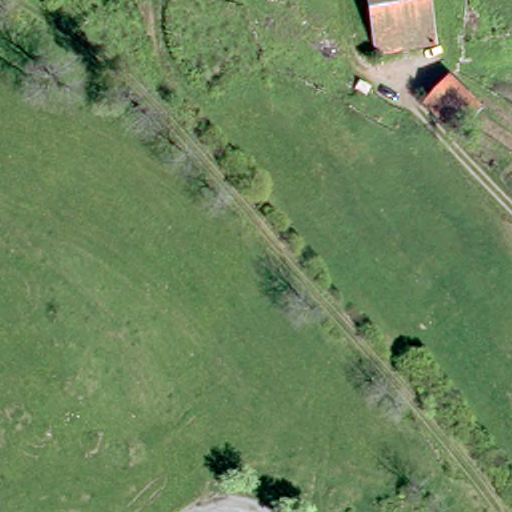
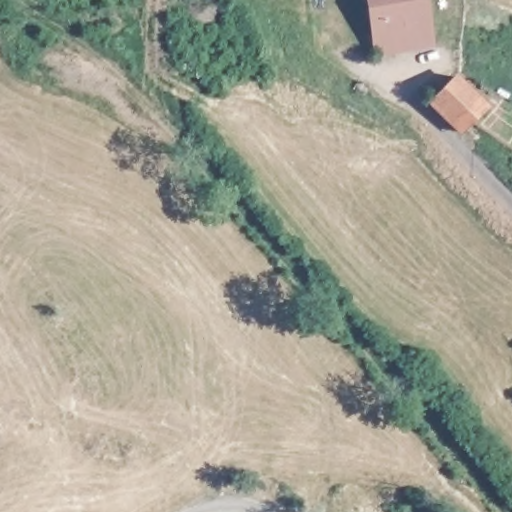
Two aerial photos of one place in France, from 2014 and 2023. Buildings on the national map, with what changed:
unchanged [(366,45),(360,0),(425,0),(430,38),(366,45)]
unchanged [(432,102),(455,81),(485,110),(460,133),(432,102)]

